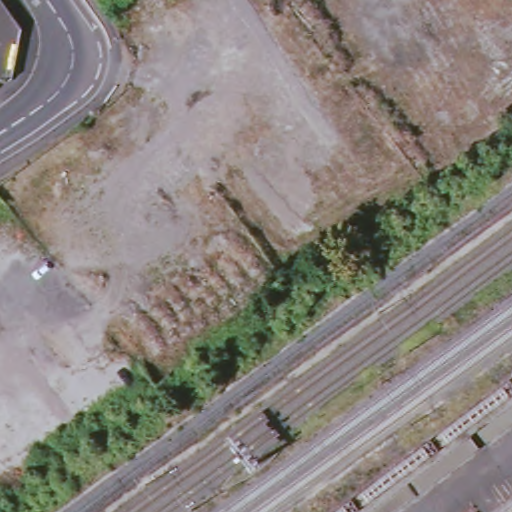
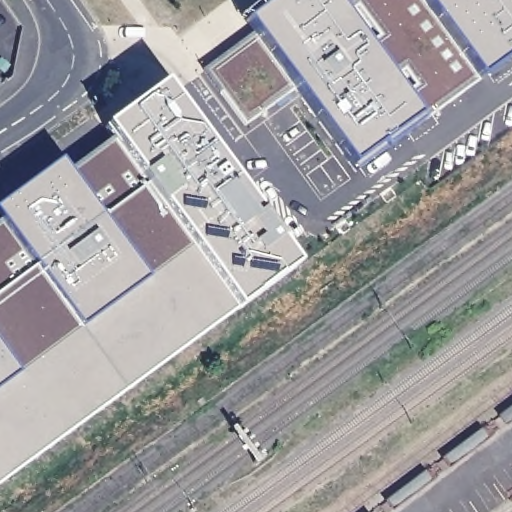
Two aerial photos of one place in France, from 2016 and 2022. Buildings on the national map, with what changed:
new [(479,78),(417,117),(350,164),(297,90),(245,126),(203,71),(254,33),(246,22),(277,0),(512,0),(512,54),(479,78)]
new [(0,220),(0,207),(60,162),(68,174),(113,140),(105,129),(164,85),(297,266),(239,310),(0,483),(0,222),(1,221),(0,220)]

